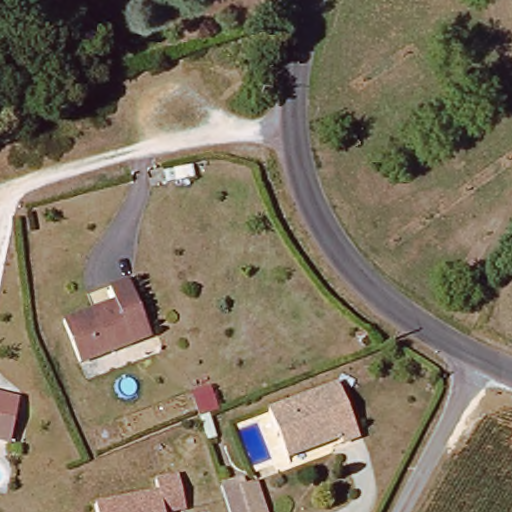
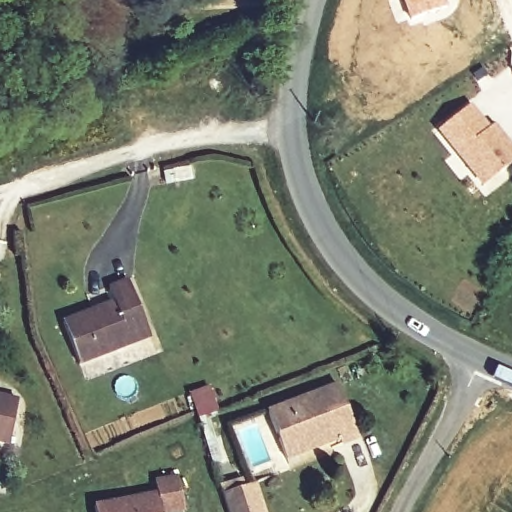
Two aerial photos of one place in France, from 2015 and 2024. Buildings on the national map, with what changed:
new [(398,24),(389,1),(393,0),(445,0),(448,6),(398,24)]
new [(489,129),(495,125),(512,147),(512,165),(482,189),(437,132),(470,106),(489,129)]
unchanged [(150,341),(77,370),(59,325),(114,303),(110,293),(129,285),(150,341)]
unchanged [(285,460),(269,416),(337,391),(356,441),(341,447),(339,440),(285,460)]
unchanged [(14,447),(0,444),(0,403),(22,408),(14,447)]
unchanged [(92,498),(155,485),(153,473),(175,469),(183,502),(160,506),(162,512),(95,512),(92,498)]
unchanged [(260,492),(268,512),(233,512),(226,491),(250,481),(255,494),(260,492)]

